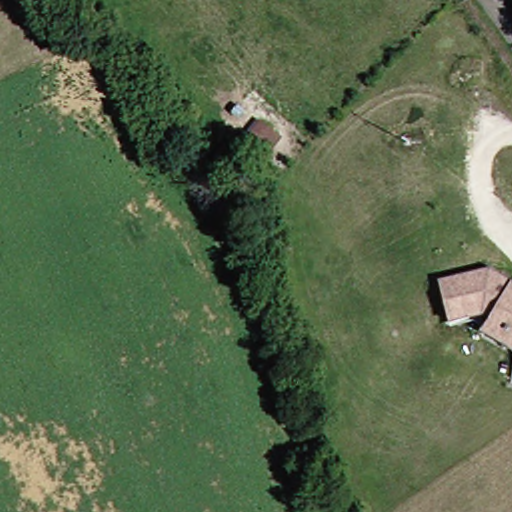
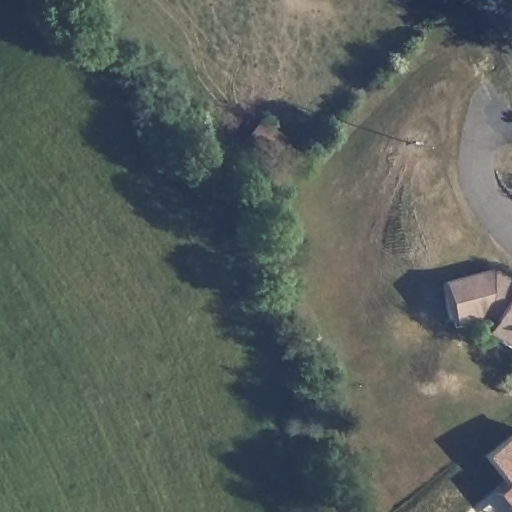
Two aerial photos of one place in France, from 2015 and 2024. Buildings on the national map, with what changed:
unchanged [(484,321),(492,307),(490,301),(452,314),(438,277),(484,261),(512,278),(512,336),(484,321)]
new [(506,512),(492,494),(504,485),(482,456),(512,432),(512,512),(506,512)]

